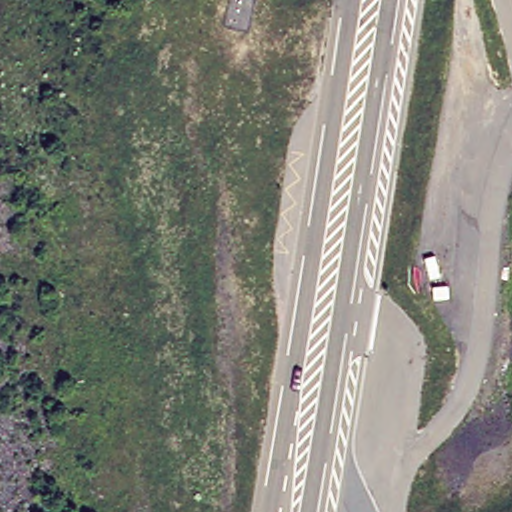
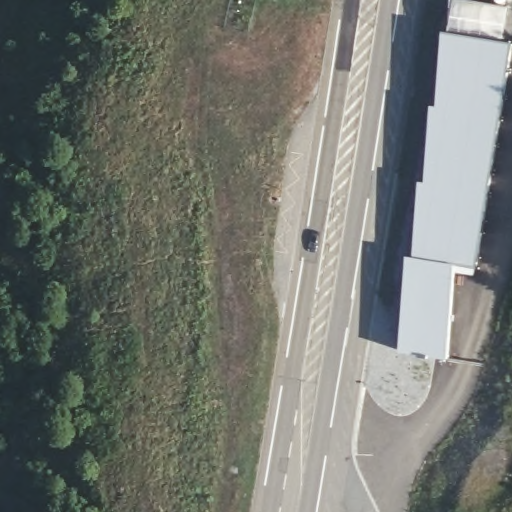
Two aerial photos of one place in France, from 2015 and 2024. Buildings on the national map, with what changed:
new [(475,266),(456,264),(448,357),(399,351),(406,255),(413,257),(419,180),(425,181),(430,104),(436,105),(443,30),(511,42),(475,266)]

